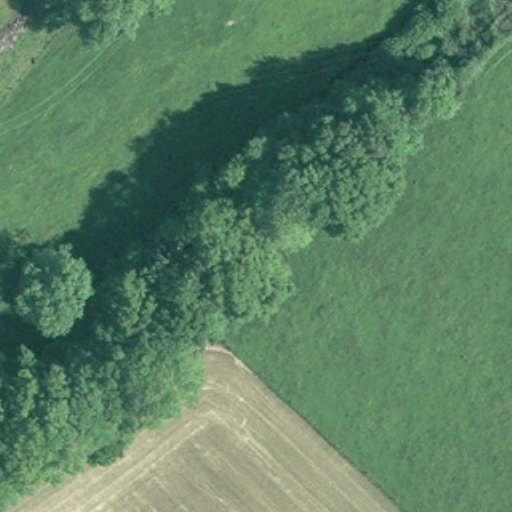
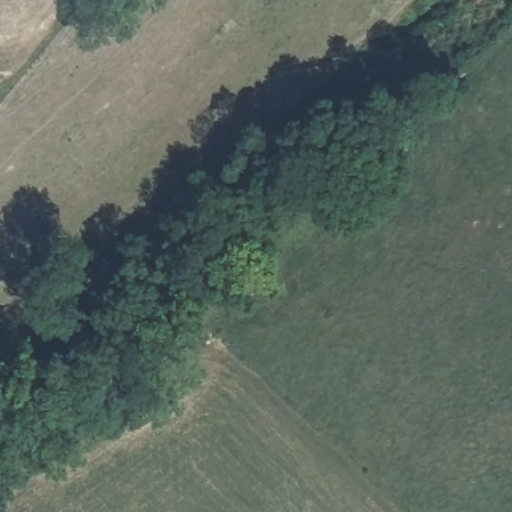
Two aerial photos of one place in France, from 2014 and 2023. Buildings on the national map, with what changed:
unchanged [(79,237),(63,253),(51,242),(68,226),(79,237)]

